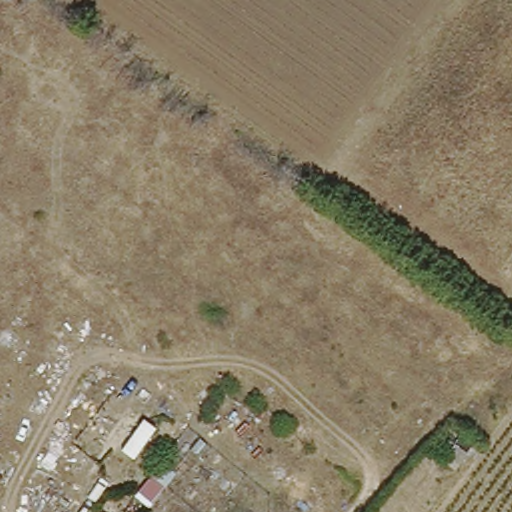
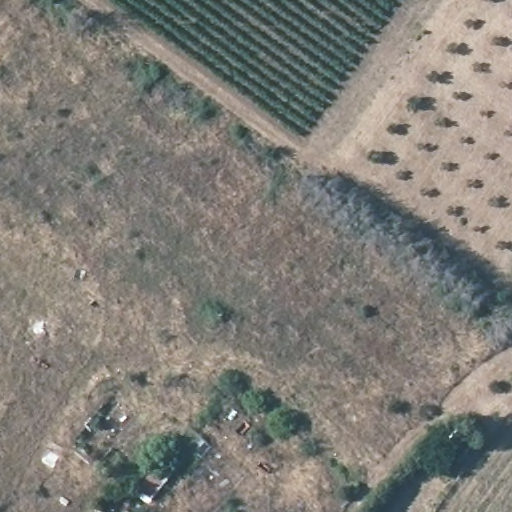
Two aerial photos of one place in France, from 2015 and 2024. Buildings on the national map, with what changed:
unchanged [(169,485),(143,512),(140,512),(123,498),(153,468),(169,485)]

